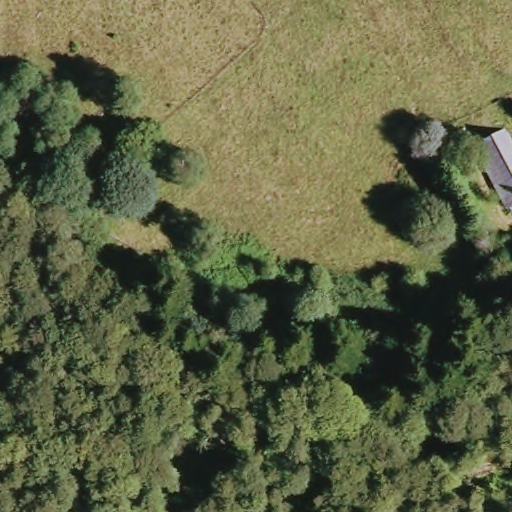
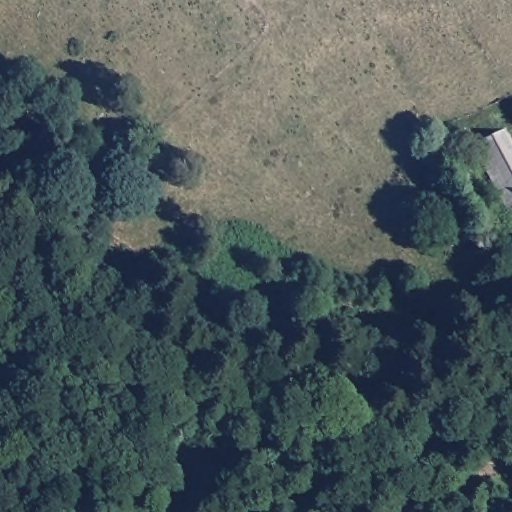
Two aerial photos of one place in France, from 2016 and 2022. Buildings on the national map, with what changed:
unchanged [(482,149),(512,134),(512,207),(482,149)]

